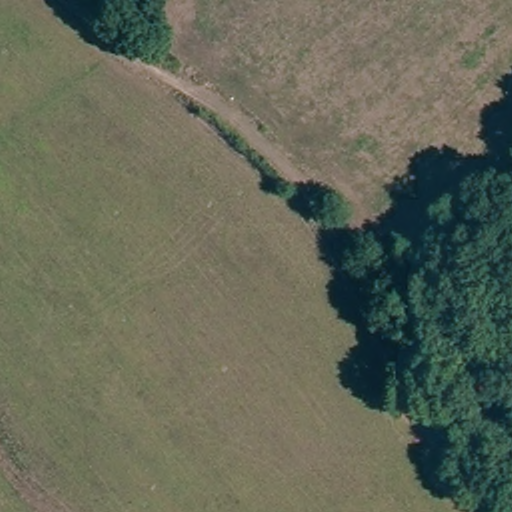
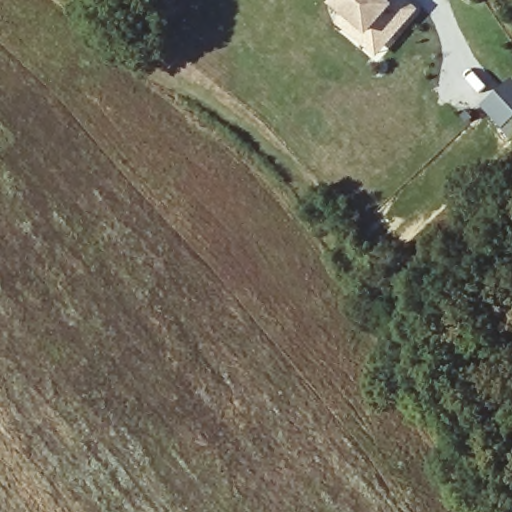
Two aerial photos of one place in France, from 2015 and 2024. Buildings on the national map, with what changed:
new [(343,16),(331,6),(336,0),(407,0),(420,10),(379,58),(338,25),(343,16)]
new [(483,107),(512,80),(512,138),(483,107)]

